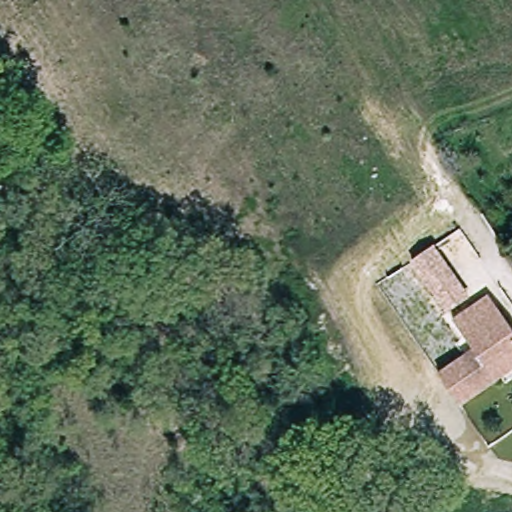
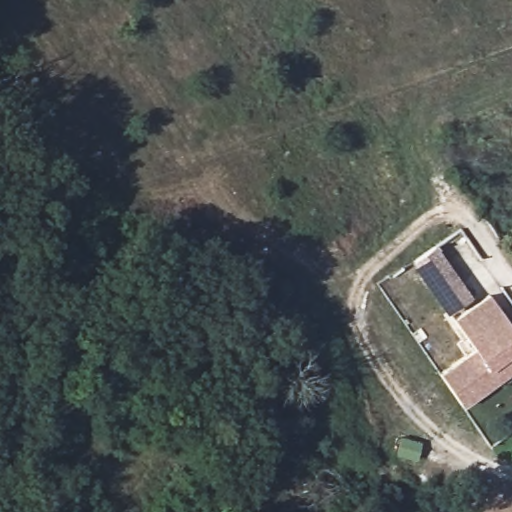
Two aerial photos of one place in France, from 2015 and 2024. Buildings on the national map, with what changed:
unchanged [(432,247),(468,298),(447,313),(410,261),(432,247)]
unchanged [(461,406),(439,375),(473,350),(452,321),(487,296),(512,330),(512,370),(496,381),(461,406)]

